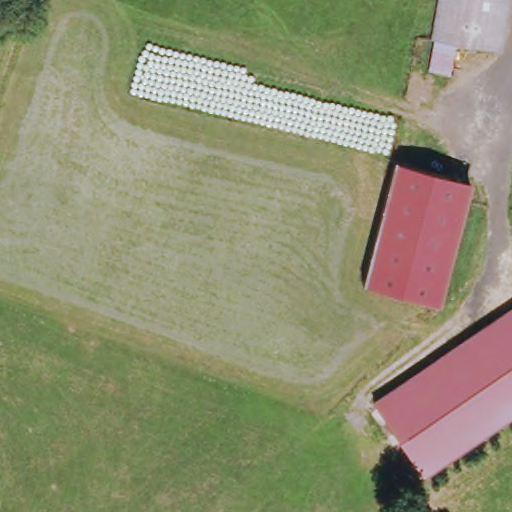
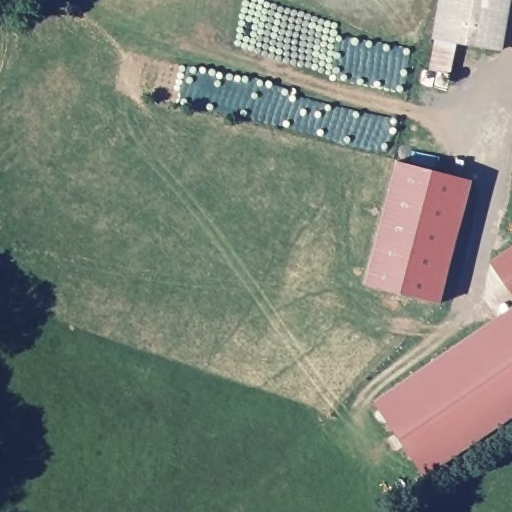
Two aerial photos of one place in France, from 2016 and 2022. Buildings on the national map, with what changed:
unchanged [(429,41),(436,0),(505,0),(495,53),(429,41)]
unchanged [(365,288),(365,287),(396,165),(471,185),(440,307),(365,288)]
new [(512,247),(512,294),(490,262),(512,247)]
unchanged [(372,398),(512,302),(512,416),(425,475),(372,398)]

